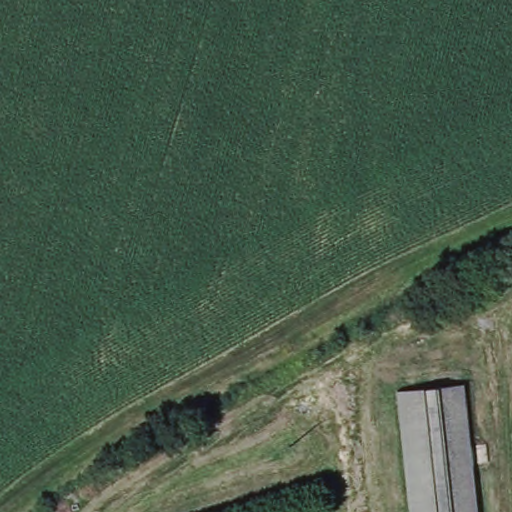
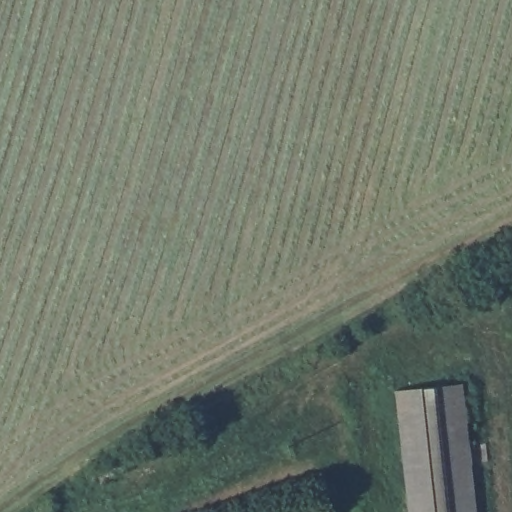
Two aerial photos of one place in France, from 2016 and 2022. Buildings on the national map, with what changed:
unchanged [(410,512),(397,392),(463,385),(477,512),(410,512)]

